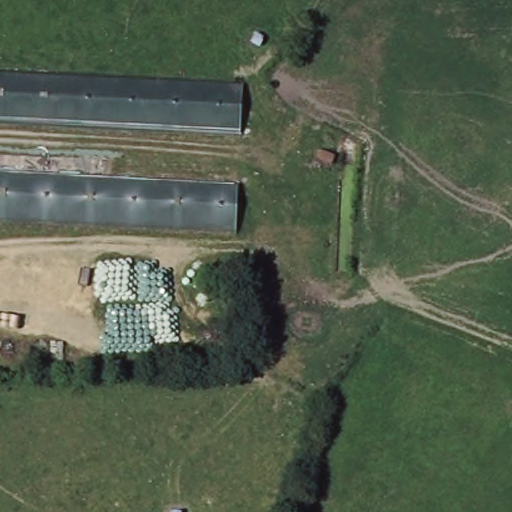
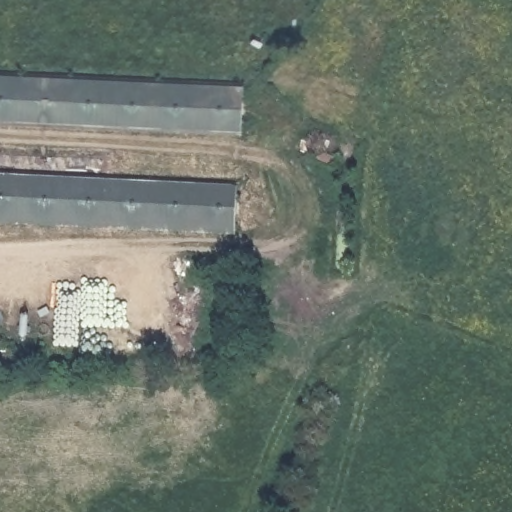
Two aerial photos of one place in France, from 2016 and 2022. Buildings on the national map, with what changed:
unchanged [(243,139),(0,126),(0,77),(246,89),(243,139)]
unchanged [(238,239),(0,226),(0,175),(240,187),(238,239)]

